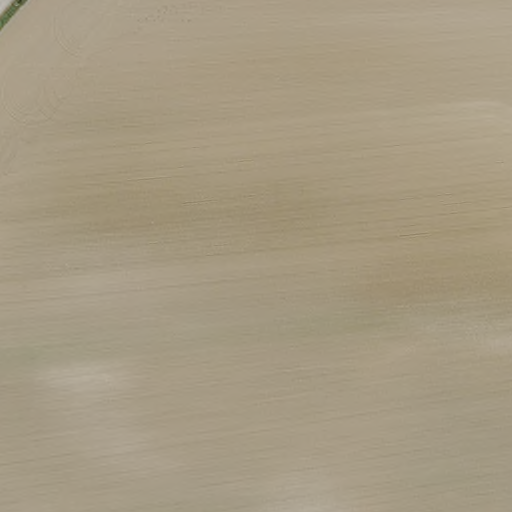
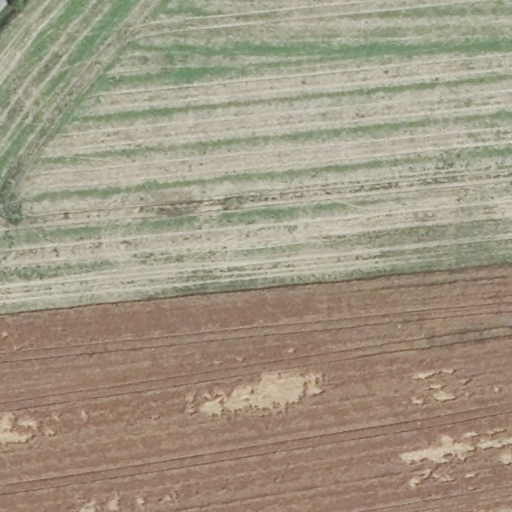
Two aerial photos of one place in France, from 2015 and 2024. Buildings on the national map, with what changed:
[]

